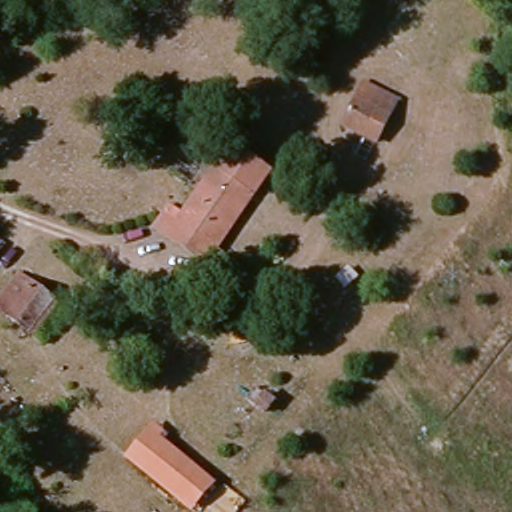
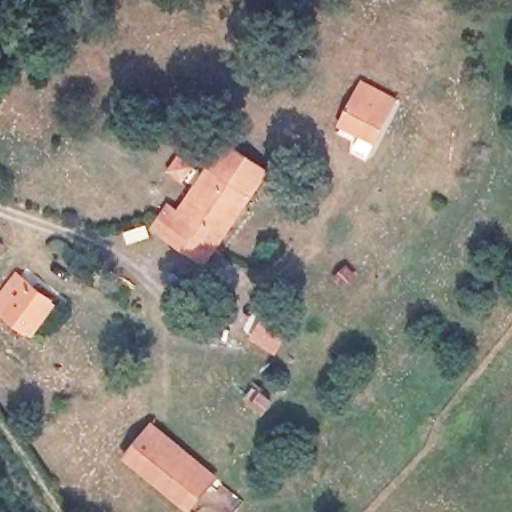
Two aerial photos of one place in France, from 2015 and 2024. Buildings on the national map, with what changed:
unchanged [(342,126),(356,97),(364,83),(398,100),(390,114),(375,144),(342,126)]
unchanged [(163,242),(173,227),(225,152),(264,177),(211,253),(200,268),(163,242)]
unchanged [(0,241),(6,246),(0,254),(0,241)]
unchanged [(0,312),(0,311),(23,281),(56,306),(33,338),(0,312)]
unchanged [(187,507),(146,474),(128,458),(149,432),(168,448),(208,480),(187,507)]

